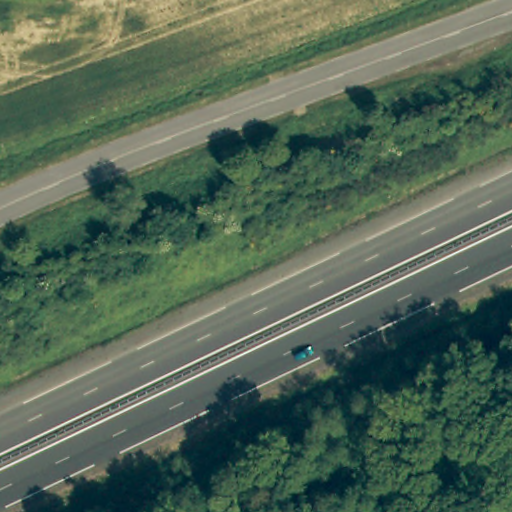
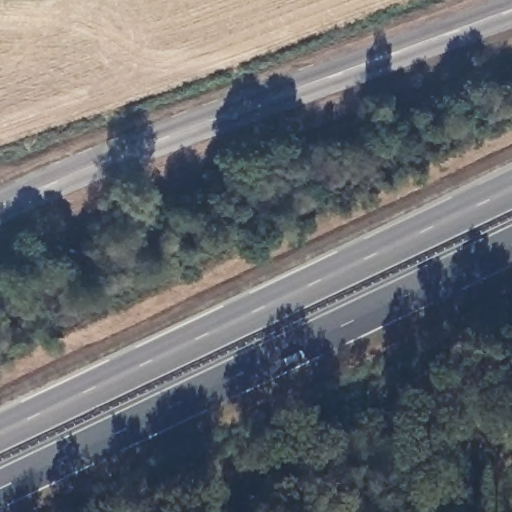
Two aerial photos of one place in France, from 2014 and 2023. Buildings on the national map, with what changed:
[]

